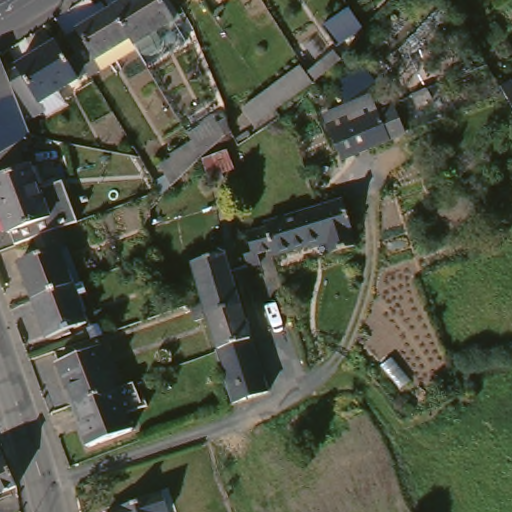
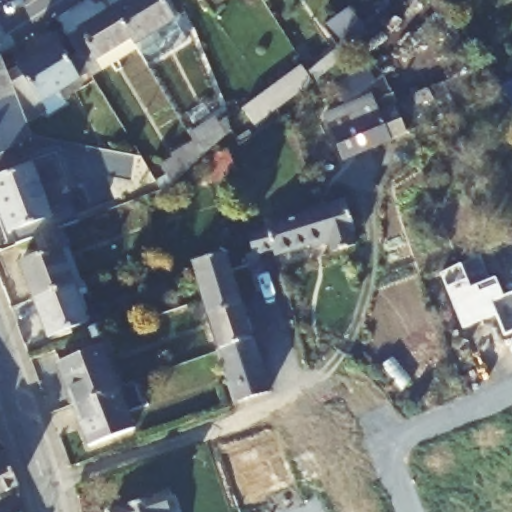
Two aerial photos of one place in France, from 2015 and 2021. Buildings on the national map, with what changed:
unchanged [(72,22),(83,15),(82,13),(104,0),(120,0),(144,38),(98,66),(96,62),(72,22)]
unchanged [(151,50),(144,38),(120,0),(174,0),(190,27),(151,50)]
unchanged [(361,0),(368,11),(342,30),(327,9),(337,2),(341,0),(361,0)]
unchanged [(341,35),(348,45),(320,64),(313,54),(341,35)]
unchanged [(21,67),(20,66),(60,40),(82,79),(45,103),(50,111),(29,123),(10,73),(21,67)]
unchanged [(304,51),(315,66),(259,109),(247,93),(304,51)]
unchanged [(3,55),(10,73),(29,123),(35,137),(34,137),(5,154),(0,157),(0,57),(3,55)]
unchanged [(375,67),(385,82),(353,104),(342,89),(375,67)]
unchanged [(501,85),(511,79),(512,81),(512,104),(505,92),(501,85)]
unchanged [(383,99),(390,116),(405,110),(416,138),(401,144),(377,153),(350,164),(333,119),(383,99)]
unchanged [(163,194),(160,189),(158,186),(154,180),(166,173),(161,165),(174,157),(171,153),(192,141),(188,133),(215,117),(218,123),(228,117),(232,128),(202,157),(172,185),(172,186),(163,194)]
unchanged [(19,245),(16,235),(13,236),(0,201),(0,157),(5,154),(34,137),(36,144),(34,145),(35,149),(25,153),(30,166),(36,164),(45,188),(68,179),(83,220),(80,222),(66,227),(39,237),(19,245)]
unchanged [(203,161),(229,150),(236,168),(222,174),(224,180),(212,185),(203,161)]
unchanged [(266,262),(253,267),(250,255),(257,252),(251,234),(271,228),(269,224),(323,207),(349,199),(359,233),(356,234),(360,247),(335,254),(331,241),(279,257),(277,251),(263,255),(266,262)]
unchanged [(23,264),(46,255),(39,237),(66,227),(87,282),(79,285),(37,301),(23,264)]
unchanged [(194,259),(212,253),(214,259),(230,254),(246,306),(212,317),(194,259)]
new [(487,281),(492,279),(501,297),(510,294),(512,297),(512,333),(503,337),(494,316),(462,331),(437,276),(476,256),(487,281)]
unchanged [(93,322),(51,338),(37,301),(79,285),(93,322)]
unchanged [(194,308),(206,304),(210,317),(210,319),(198,323),(194,308)]
unchanged [(212,317),(246,306),(257,339),(222,351),(212,317)]
unchanged [(257,339),(259,339),(275,389),(239,401),(222,351),(257,339)]
unchanged [(61,363),(108,346),(123,389),(77,406),(61,363)]
unchanged [(148,408),(133,413),(139,430),(92,447),(77,406),(123,389),(138,383),(148,408)]
unchanged [(5,461),(17,488),(0,496),(0,464),(5,461)]
unchanged [(111,512),(169,492),(176,511),(174,512),(111,512)]

